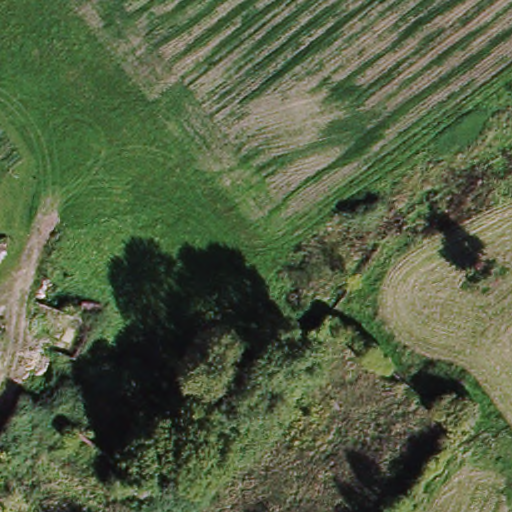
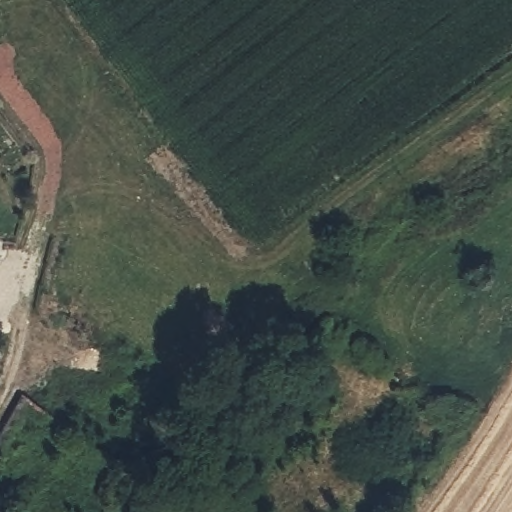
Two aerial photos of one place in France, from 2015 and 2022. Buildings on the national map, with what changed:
unchanged [(0,362),(0,353),(4,356),(0,362)]
unchanged [(161,499),(131,480),(136,471),(167,493),(161,499)]

